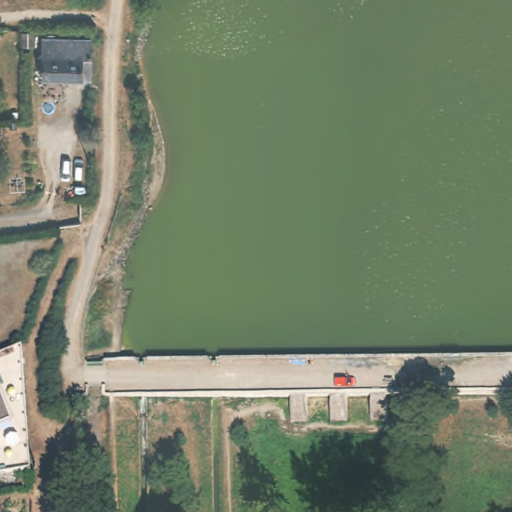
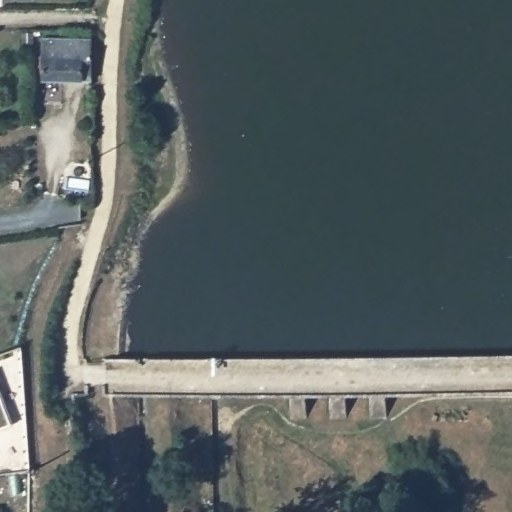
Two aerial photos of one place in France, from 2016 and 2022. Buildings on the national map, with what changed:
unchanged [(84,35),(86,82),(45,84),(44,37),(84,35)]
unchanged [(21,344),(30,470),(0,474),(0,352),(21,344)]

